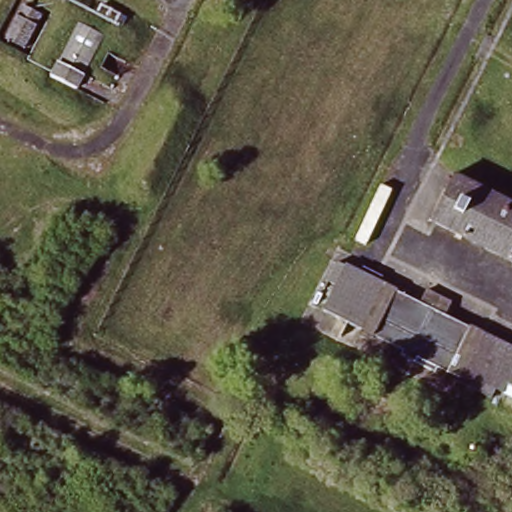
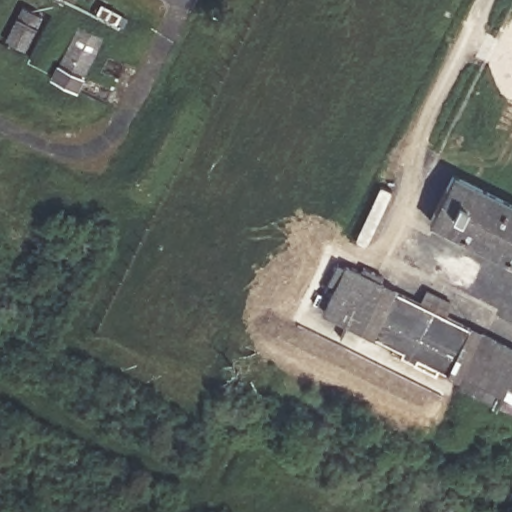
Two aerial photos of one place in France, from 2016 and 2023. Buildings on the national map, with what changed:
unchanged [(65,2),(62,0),(66,0),(65,2)]
unchanged [(25,4),(45,14),(30,46),(12,35),(25,4)]
unchanged [(93,4),(110,13),(102,25),(87,18),(93,4)]
unchanged [(80,31),(102,44),(80,83),(58,71),(80,31)]
unchanged [(451,182),(512,213),(512,268),(430,228),(451,182)]
unchanged [(340,268),(349,274),(355,265),(370,273),(364,281),(377,288),(355,329),(320,310),(340,268)]
unchanged [(392,294),(417,306),(423,295),(445,308),(441,317),(467,333),(445,372),(432,366),(427,376),(392,357),(396,348),(372,334),(392,294)]
unchanged [(478,337),(512,354),(512,405),(458,378),(478,337)]

